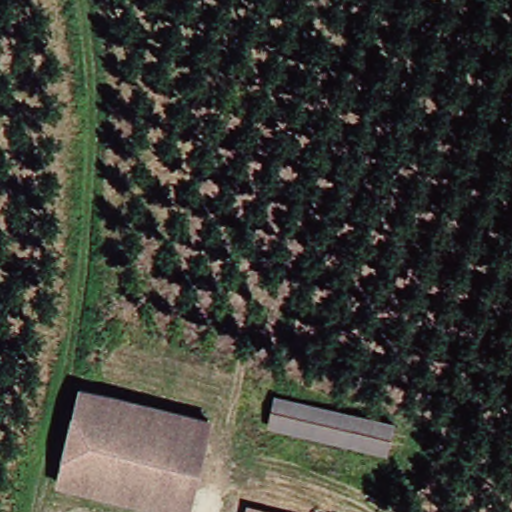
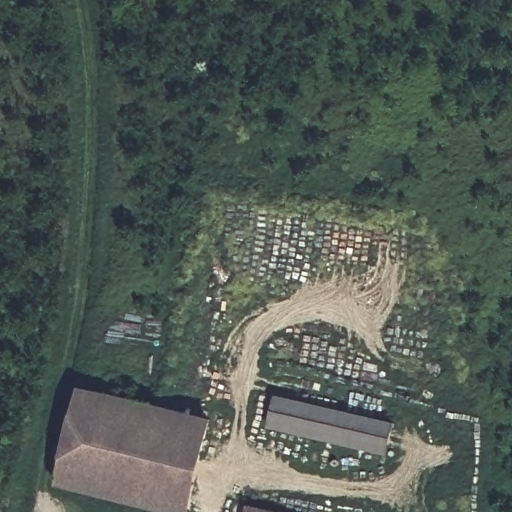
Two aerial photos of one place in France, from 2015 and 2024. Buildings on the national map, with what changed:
unchanged [(49,480),(70,388),(89,392),(203,419),(196,446),(178,441),(163,509),(49,480)]
unchanged [(269,394),(384,423),(378,454),(260,424),(269,394)]
unchanged [(196,446),(181,512),(176,512),(163,509),(178,441),(196,446)]
unchanged [(240,504),(265,511),(272,512),(239,512),(240,504)]

